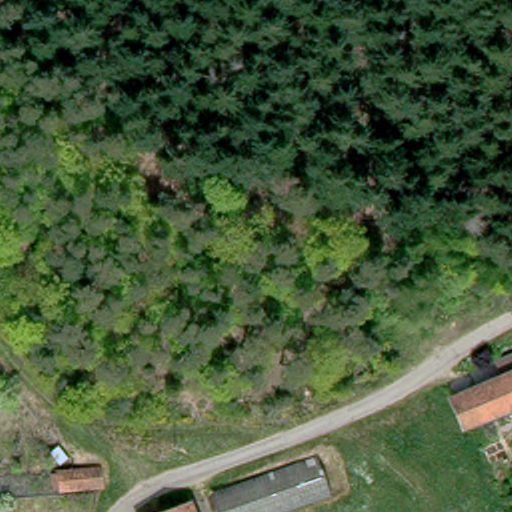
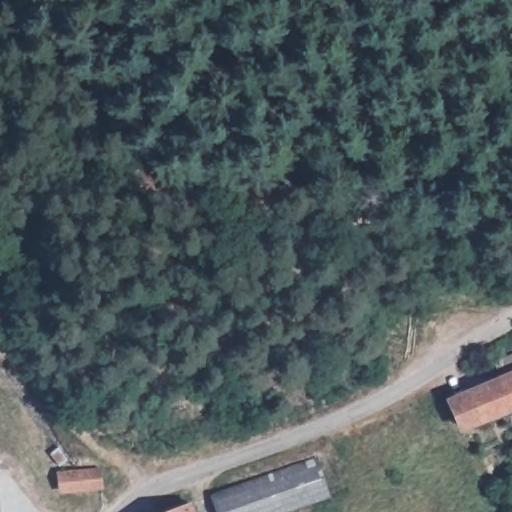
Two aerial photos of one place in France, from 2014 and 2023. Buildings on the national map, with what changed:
unchanged [(491,369),(512,359),(512,378),(499,385),(491,369)]
unchanged [(447,410),(499,385),(512,378),(512,410),(467,432),(459,436),(447,410)]
unchanged [(102,460),(105,475),(64,481),(62,465),(102,460)]
unchanged [(219,512),(214,497),(319,463),(330,501),(294,512),(219,512)]
unchanged [(197,512),(192,512),(197,511),(197,512)]

